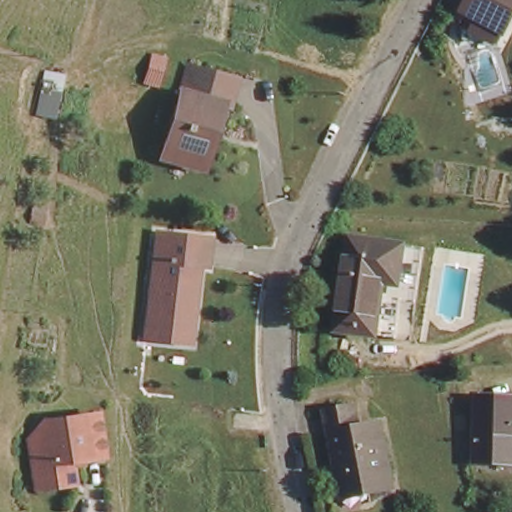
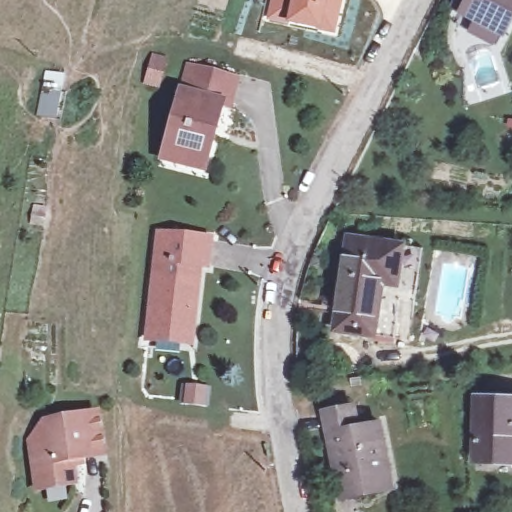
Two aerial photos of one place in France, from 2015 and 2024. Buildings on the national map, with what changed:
new [(343,0),(334,36),(264,20),(268,0),(343,0)]
unchanged [(484,19),(481,24),(464,15),(472,0),(512,0),(512,11),(503,29),(484,19)]
unchanged [(233,111),(221,108),(206,165),(167,155),(191,70),(239,85),(233,111)]
unchanged [(46,105),(59,109),(55,124),(43,120),(46,105)]
unchanged [(27,221),(38,224),(35,236),(23,234),(27,221)]
unchanged [(345,236),(399,241),(394,280),(379,280),(374,332),(334,328),(345,236)]
unchanged [(148,345),(150,330),(161,237),(211,243),(208,270),(200,270),(193,335),(191,349),(148,345)]
unchanged [(512,400),(512,462),(476,460),(478,398),(512,400)]
unchanged [(339,500),(338,490),(325,411),(355,406),(358,428),(381,425),(389,481),(391,491),(339,500)]
unchanged [(41,490),(40,480),(35,441),(50,422),(101,415),(108,455),(76,460),(78,475),(79,485),(41,490)]

